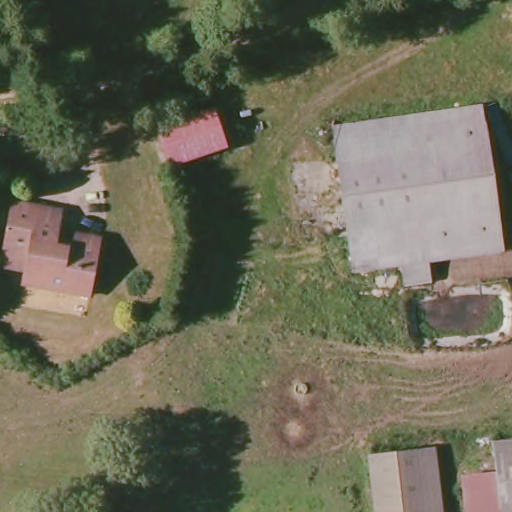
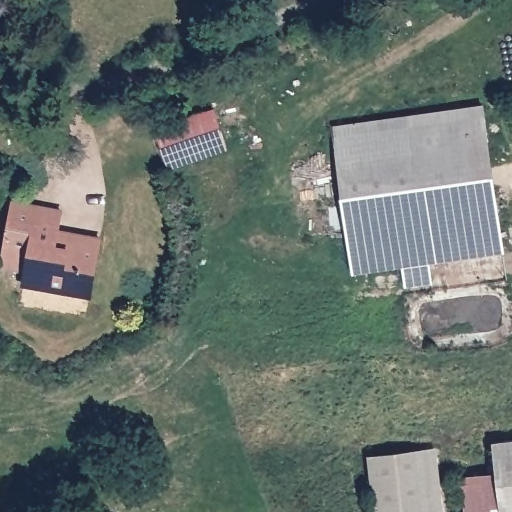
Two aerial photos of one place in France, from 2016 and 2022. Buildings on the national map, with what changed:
unchanged [(497,250),(423,261),(426,281),(400,285),(397,265),(348,271),(327,126),(477,105),(497,250)]
unchanged [(225,147),(169,165),(155,127),(213,109),(225,147)]
unchanged [(23,283),(25,270),(19,268),(1,265),(12,201),(60,210),(57,230),(99,238),(97,245),(89,295),(23,283)]
unchanged [(512,440),(512,512),(495,512),(490,473),(487,443),(512,440)]
unchanged [(433,512),(381,512),(374,457),(425,451),(433,512)]
unchanged [(490,473),(495,512),(462,512),(458,476),(490,473)]

